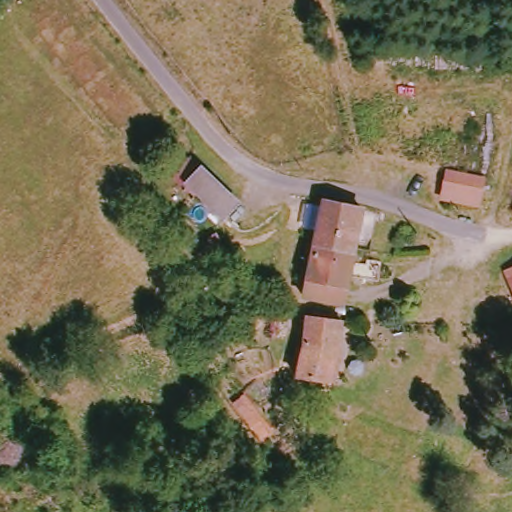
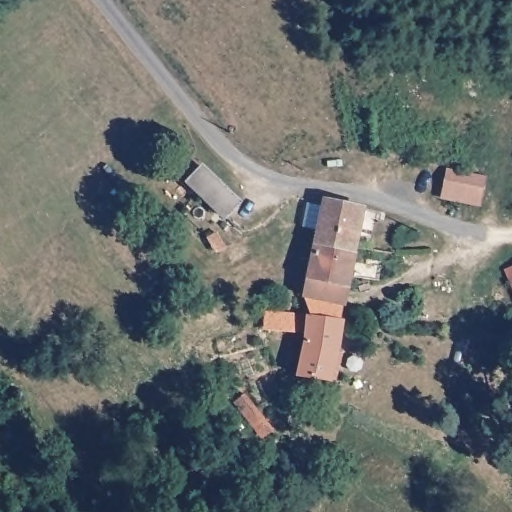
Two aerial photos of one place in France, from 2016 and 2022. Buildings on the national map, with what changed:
unchanged [(439,202),(444,168),(485,176),(478,208),(439,202)]
unchanged [(221,220),(190,183),(203,172),(234,209),(221,220)]
unchanged [(316,202),(359,209),(351,256),(308,247),(316,202)]
unchanged [(512,202),(512,213),(509,211),(512,202)]
unchanged [(308,247),(351,256),(345,292),(343,307),(300,298),(302,285),(308,247)]
unchanged [(341,318),(335,353),(327,381),(297,371),(305,347),(305,316),(341,318)]

